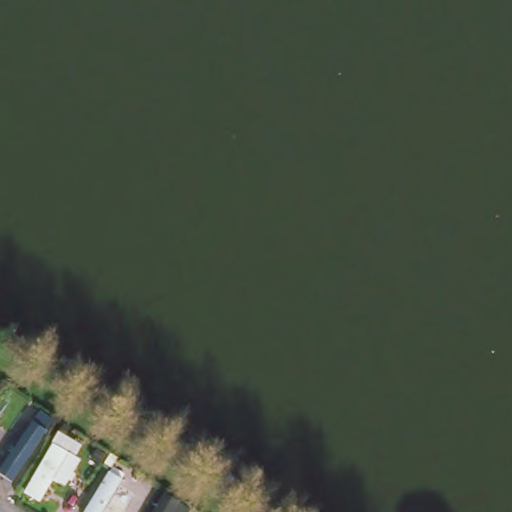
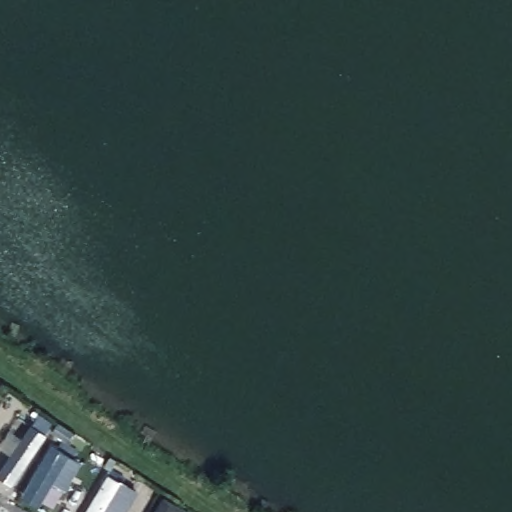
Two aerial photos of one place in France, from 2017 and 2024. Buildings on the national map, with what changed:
unchanged [(20,435),(41,447),(25,476),(2,456),(20,435)]
unchanged [(65,486),(51,475),(34,506),(20,494),(50,442),(81,460),(65,486)]
unchanged [(122,478),(116,489),(129,495),(122,511),(110,505),(106,512),(83,512),(104,470),(122,478)]
unchanged [(195,512),(155,512),(169,492),(195,512)]

